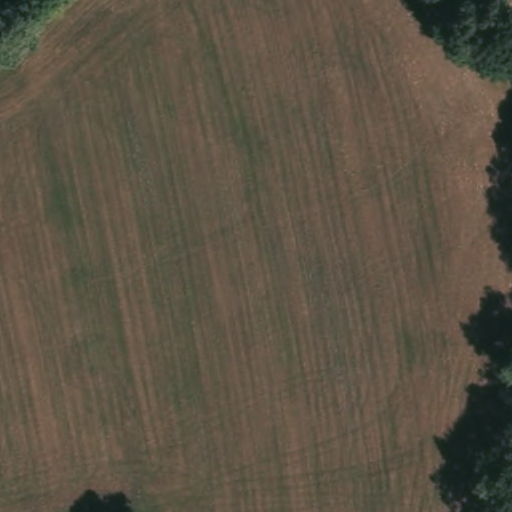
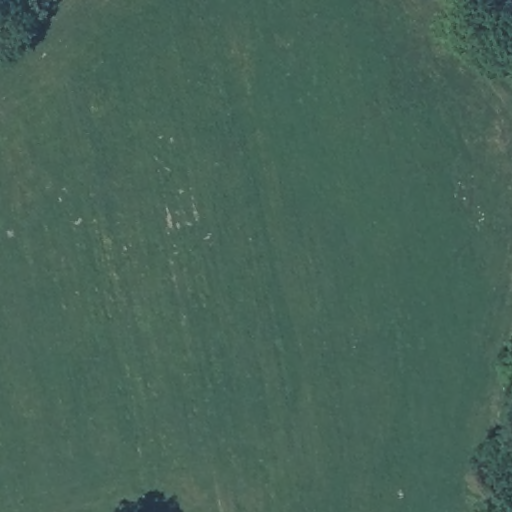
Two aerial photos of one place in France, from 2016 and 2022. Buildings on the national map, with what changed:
[]

